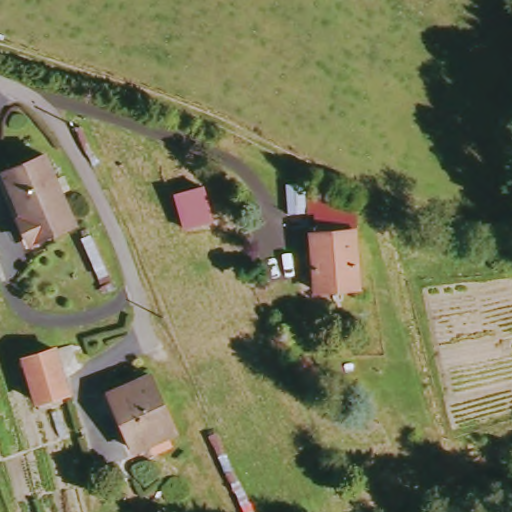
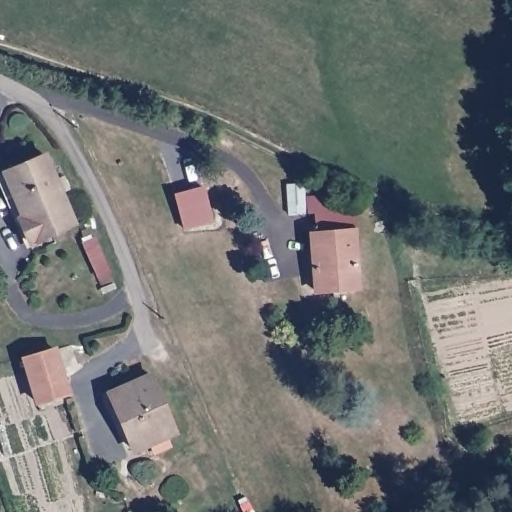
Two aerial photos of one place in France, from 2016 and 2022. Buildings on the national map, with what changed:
unchanged [(75,228),(25,246),(16,219),(25,217),(10,172),(52,158),(75,228)]
unchanged [(211,220),(182,229),(174,194),(203,187),(211,220)]
unchanged [(359,289),(315,289),(315,233),(322,232),(322,212),(315,212),(316,196),(340,198),(341,211),(360,211),(359,289)]
unchanged [(23,357),(41,352),(55,349),(66,394),(35,402),(23,357)]
unchanged [(116,394),(156,379),(177,434),(136,451),(116,394)]

